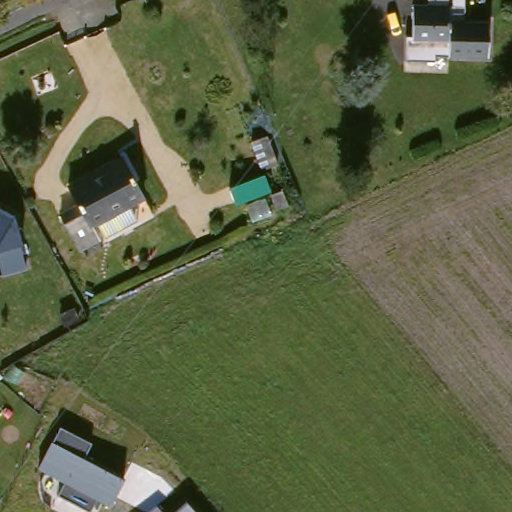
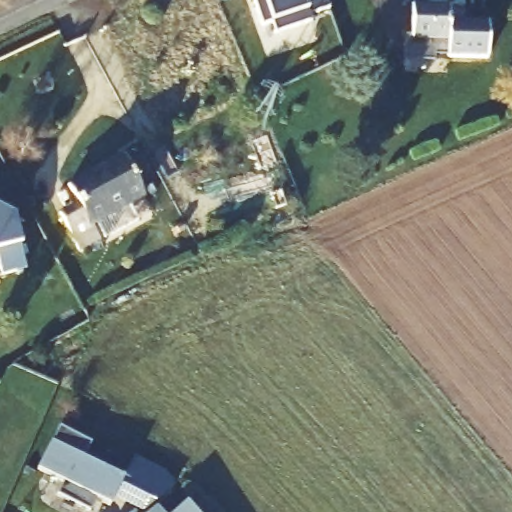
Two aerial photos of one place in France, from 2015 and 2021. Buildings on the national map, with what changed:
new [(310,11),(311,17),(275,29),(271,18),(261,21),(255,0),(328,0),(329,4),(310,11)]
unchanged [(451,8),(450,23),(490,22),(490,57),(436,57),(436,66),(410,65),(410,40),(417,40),(417,8),(428,8),(428,0),(464,0),(464,7),(451,8)]
unchanged [(121,222),(110,228),(102,214),(93,219),(101,234),(81,242),(66,211),(84,202),(71,176),(122,150),(143,194),(135,197),(142,212),(121,222)]
unchanged [(26,268),(2,274),(0,266),(0,208),(11,214),(26,268)]
unchanged [(111,505),(94,497),(89,509),(56,493),(63,480),(35,466),(57,425),(92,442),(84,457),(127,479),(111,505)]
unchanged [(186,502),(196,512),(175,512),(186,502)]
unchanged [(155,506),(160,512),(147,512),(155,506)]

